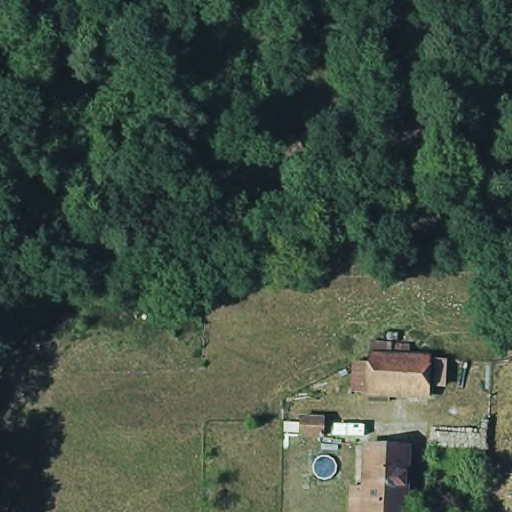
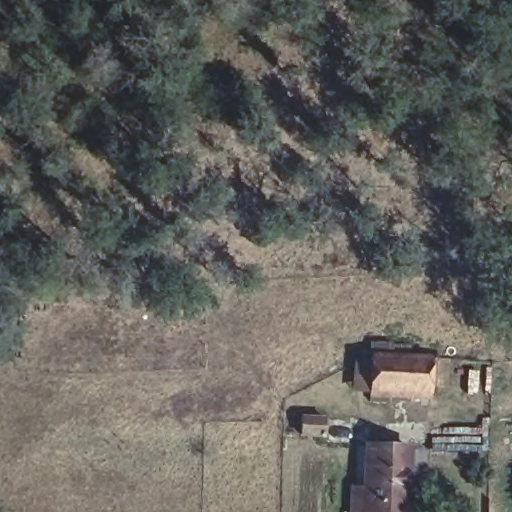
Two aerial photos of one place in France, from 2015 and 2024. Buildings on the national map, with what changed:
unchanged [(369,358),(429,358),(428,401),(369,401),(369,358)]
unchanged [(296,418),(324,419),(324,439),(295,436),(295,423),(296,418)]
unchanged [(416,445),(413,512),(372,512),(374,445),(416,445)]

